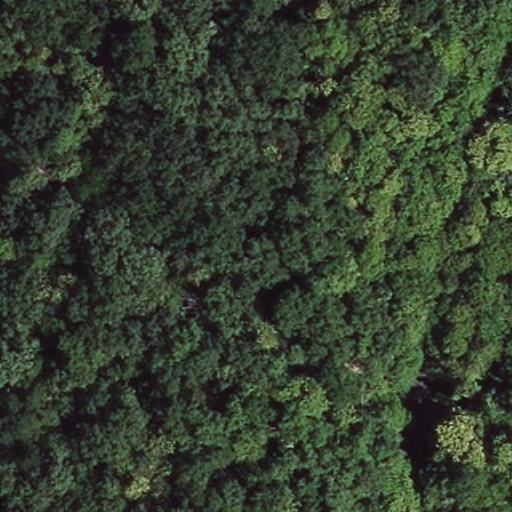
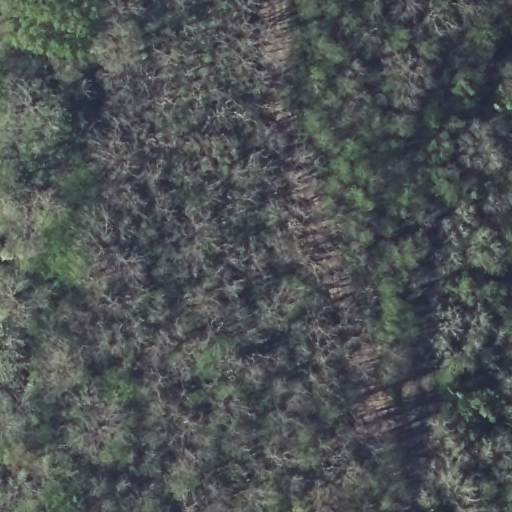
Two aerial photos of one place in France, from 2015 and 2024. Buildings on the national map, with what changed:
[]

